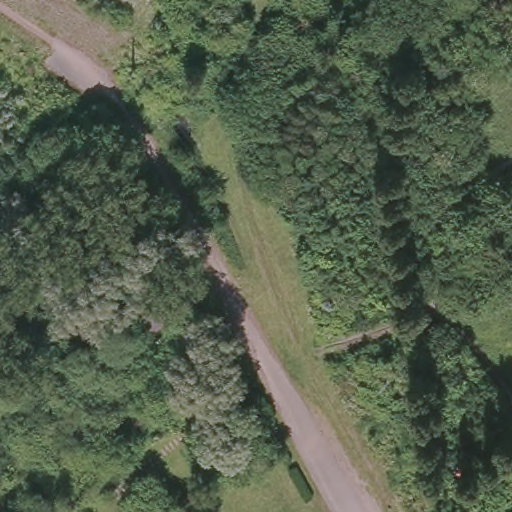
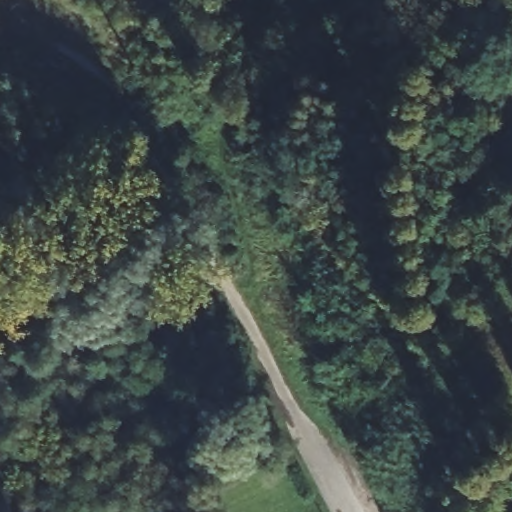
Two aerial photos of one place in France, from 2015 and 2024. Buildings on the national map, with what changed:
unchanged [(158,299),(172,321),(155,332),(142,309),(158,299)]

